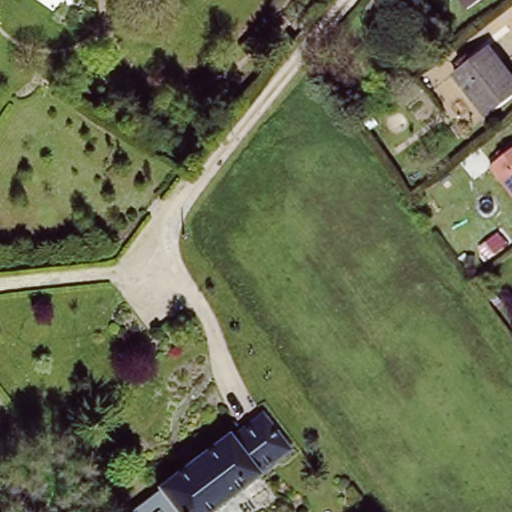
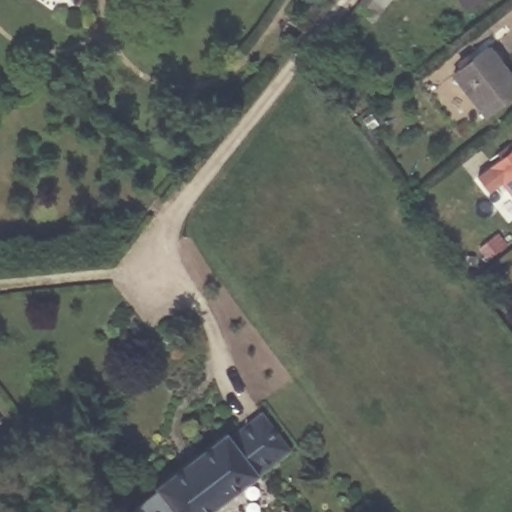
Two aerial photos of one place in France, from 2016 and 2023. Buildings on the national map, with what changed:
unchanged [(371,0),(390,0),(380,11),(370,2),(371,0)]
unchanged [(468,8),(462,0),(480,0),(468,8)]
unchanged [(487,117),(458,75),(489,53),(512,85),(512,100),(487,117)]
unchanged [(512,153),(512,195),(492,167),(512,153)]
unchanged [(176,512),(157,487),(230,433),(234,438),(265,415),(293,453),(213,512),(176,512)]
unchanged [(0,443),(0,420),(12,435),(0,443)]

